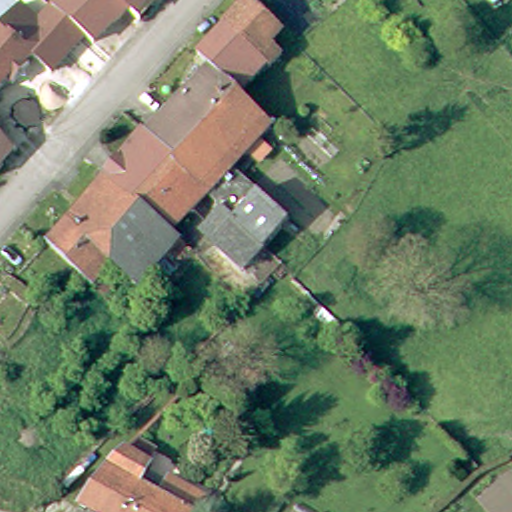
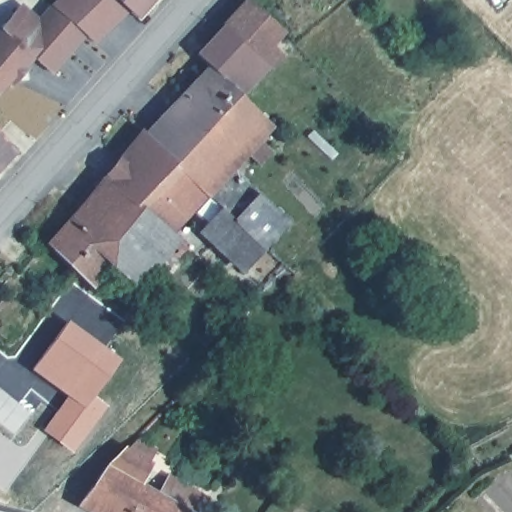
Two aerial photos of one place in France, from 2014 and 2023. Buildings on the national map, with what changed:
unchanged [(95,42),(85,33),(84,34),(56,10),(53,7),(59,0),(122,0),(130,7),(95,42)]
unchanged [(130,7),(122,0),(151,0),(137,15),(130,7)]
unchanged [(272,44),(282,54),(270,68),(267,65),(226,23),(249,0),(252,0),(283,31),(272,44)]
unchanged [(56,10),(84,34),(85,35),(52,72),(33,56),(27,62),(30,65),(14,84),(8,80),(0,89),(0,29),(21,5),(40,21),(53,7),(56,10)]
unchanged [(210,66),(198,54),(226,23),(267,65),(240,94),(272,124),(231,167),(288,220),(265,247),(222,207),(208,194),(208,192),(148,134),(147,132),(210,66)]
unchanged [(147,132),(148,134),(208,192),(208,194),(172,231),(192,249),(171,232),(107,174),(145,129),(147,132)]
unchanged [(0,170),(0,134),(15,152),(0,170)]
unchanged [(182,261),(170,249),(137,285),(113,263),(93,286),(75,269),(47,242),(67,222),(88,199),(107,174),(171,232),(192,249),(182,261)]
unchanged [(205,232),(205,225),(222,207),(265,247),(244,270),(205,232)]
new [(68,320),(123,361),(96,396),(105,405),(72,453),(42,431),(67,396),(31,368),(68,320)]
unchanged [(250,402),(238,400),(242,381),(255,383),(250,402)]
unchanged [(151,468),(140,487),(159,498),(170,481),(208,504),(204,512),(86,512),(80,508),(108,471),(126,452),(151,468)]

